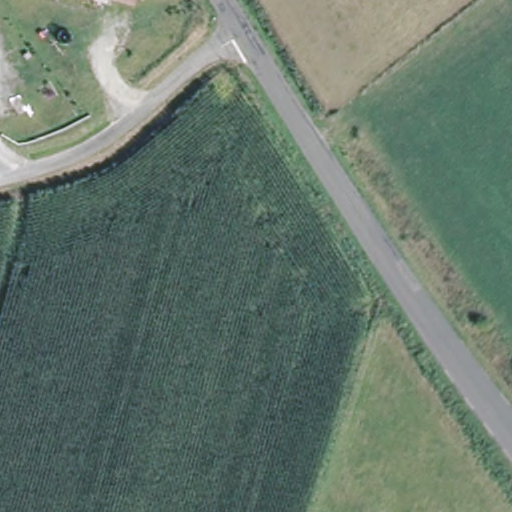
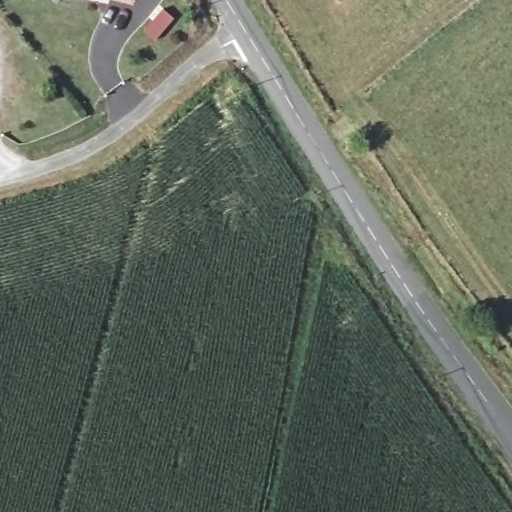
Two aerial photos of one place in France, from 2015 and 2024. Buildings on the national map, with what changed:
unchanged [(128,0),(139,0),(138,3),(128,0)]

